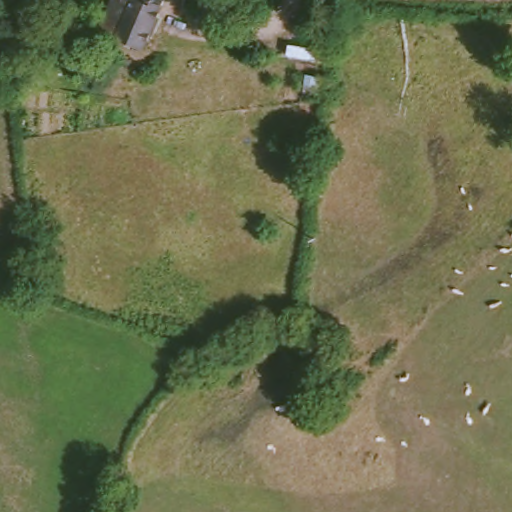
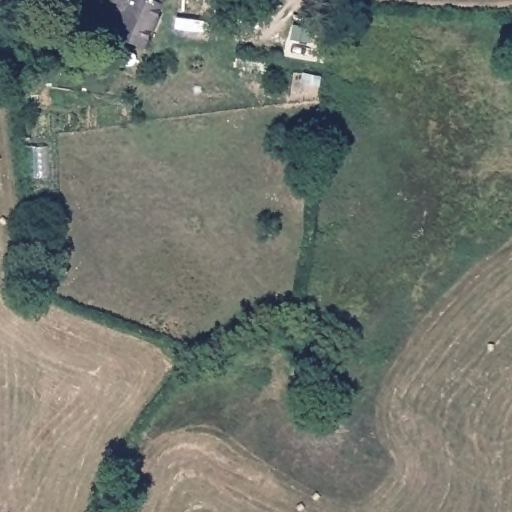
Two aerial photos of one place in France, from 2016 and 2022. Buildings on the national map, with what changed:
unchanged [(95,24),(107,0),(158,0),(137,43),(95,24)]

